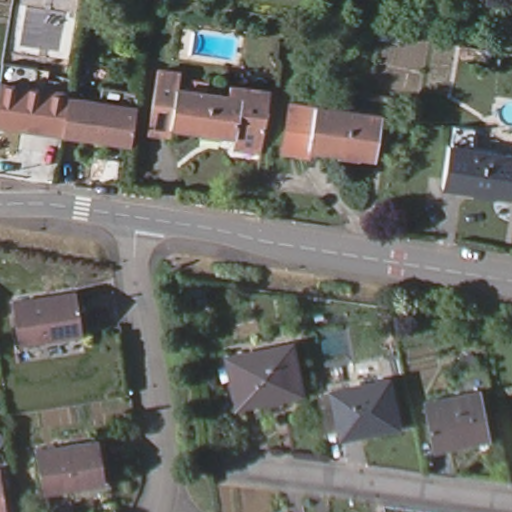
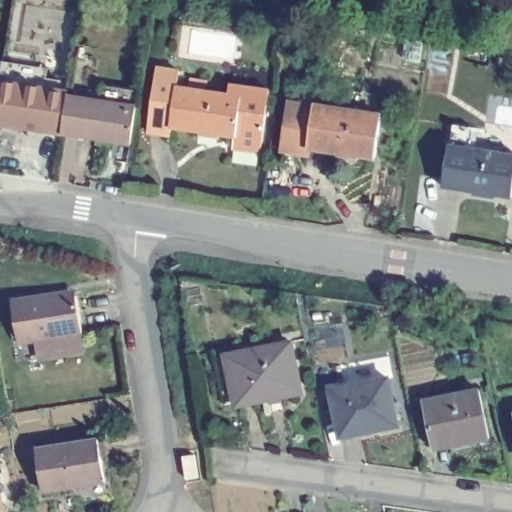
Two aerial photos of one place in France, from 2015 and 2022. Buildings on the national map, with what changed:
unchanged [(177,121),(175,131),(154,128),(164,59),(185,62),(182,83),(177,121)]
unchanged [(250,76),(275,81),(265,149),(240,146),(242,130),(247,91),(250,76)]
unchanged [(0,83),(68,95),(67,98),(61,135),(0,125),(0,83)]
unchanged [(247,91),(242,130),(177,121),(182,83),(247,91)]
unchanged [(61,135),(67,98),(137,109),(130,148),(61,135)]
unchanged [(310,150),(311,151),(310,158),(284,153),(292,103),(316,108),(310,150)]
unchanged [(383,119),(375,162),(311,151),(310,150),(316,108),(383,119)]
unchanged [(451,185),(458,144),(473,146),(476,126),(490,129),(487,149),(512,153),(512,195),(451,185)]
unchanged [(19,344),(14,301),(50,297),(75,293),(76,299),(80,337),(19,344)]
unchanged [(304,395),(242,407),(233,356),(294,344),(304,395)]
unchanged [(400,428),(346,441),(335,395),(390,382),(400,428)]
unchanged [(492,440),(435,452),(425,403),(482,392),(492,440)]
unchanged [(107,484),(45,493),(39,452),(101,443),(107,484)]
unchanged [(0,475),(5,512),(0,512),(0,475)]

